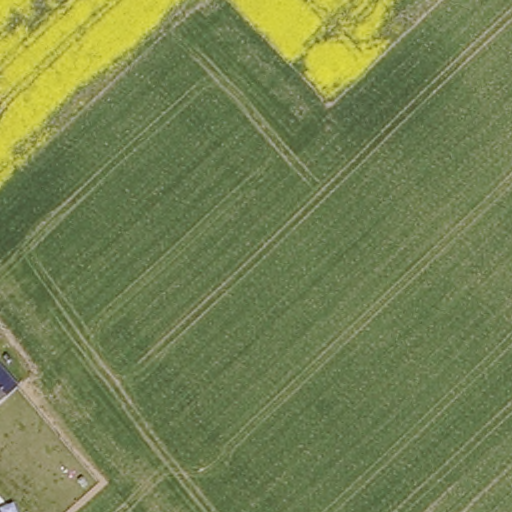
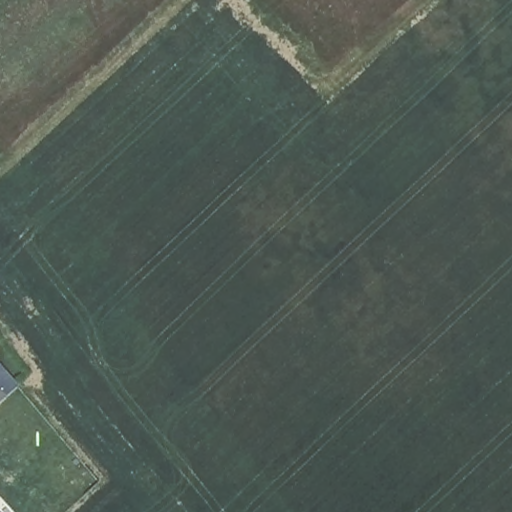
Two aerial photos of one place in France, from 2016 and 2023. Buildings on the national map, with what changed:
unchanged [(0,408),(0,398),(5,403),(0,408)]

